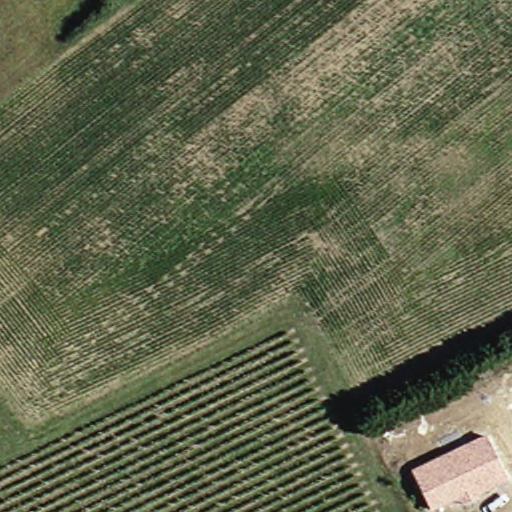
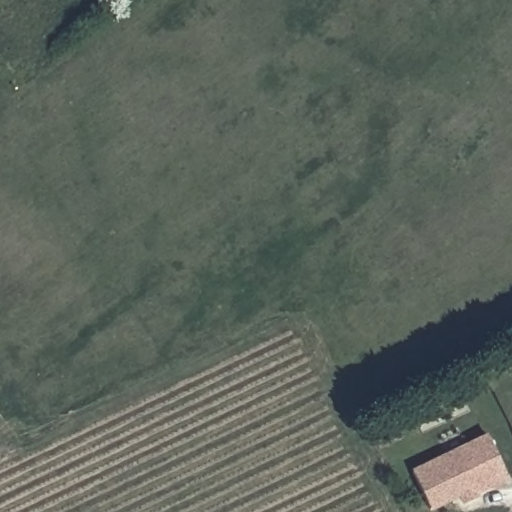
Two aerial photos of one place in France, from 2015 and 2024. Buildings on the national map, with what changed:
unchanged [(487,436),(509,480),(466,503),(461,498),(432,512),(431,512),(412,471),(487,436)]

